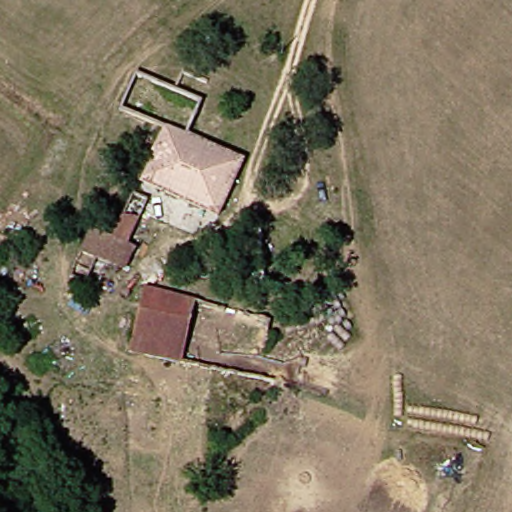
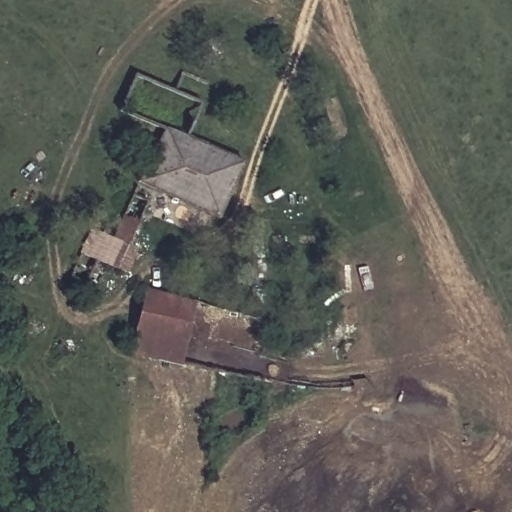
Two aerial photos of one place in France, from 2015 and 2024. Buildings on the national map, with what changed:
unchanged [(236,171),(207,224),(153,199),(120,255),(98,242),(85,261),(67,250),(95,206),(113,217),(161,136),(112,110),(132,75),(175,100),(185,79),(210,94),(198,112),(182,141),(236,171)]
unchanged [(190,303),(175,363),(122,351),(135,290),(190,303)]

